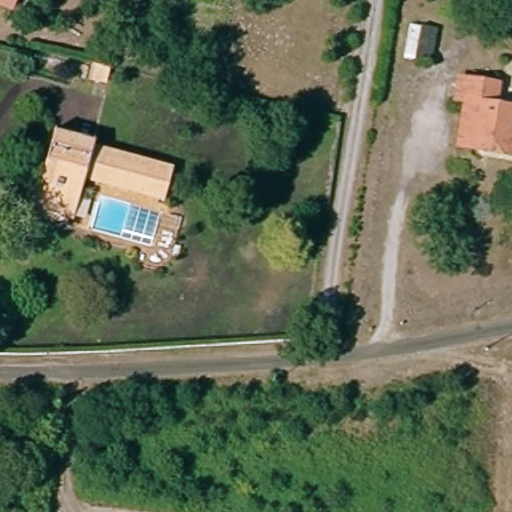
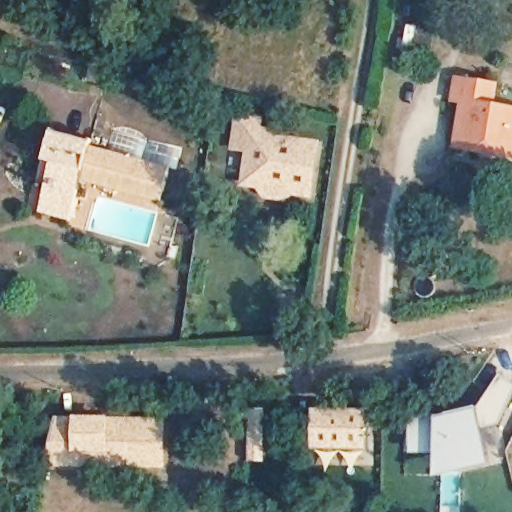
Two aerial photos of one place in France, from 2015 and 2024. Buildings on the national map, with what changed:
unchanged [(2,5),(0,5),(0,0),(3,0),(2,5)]
unchanged [(464,154),(446,151),(452,106),(444,106),(447,81),(484,86),(480,110),(512,115),(512,152),(511,160),(464,154)]
new [(314,206),(266,200),(261,190),(243,187),(247,155),(231,151),(237,114),(265,117),(264,127),(284,130),(289,137),(322,141),(314,206)]
unchanged [(67,183),(59,217),(28,210),(34,180),(26,178),(30,161),(37,130),(76,140),(75,148),(158,166),(152,191),(150,201),(67,183)]
new [(438,419),(479,408),(502,376),(512,382),(512,402),(503,425),(484,431),(492,466),(437,479),(438,458),(412,455),(413,415),(438,419)]
new [(313,450),(314,410),(369,410),(369,450),(313,450)]
new [(53,415),(169,418),(166,470),(48,464),(53,415)]

